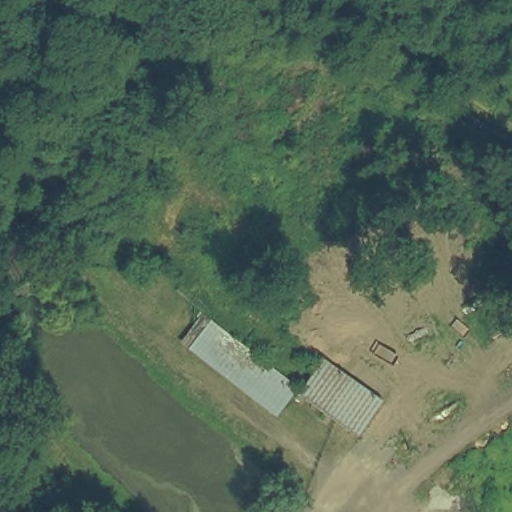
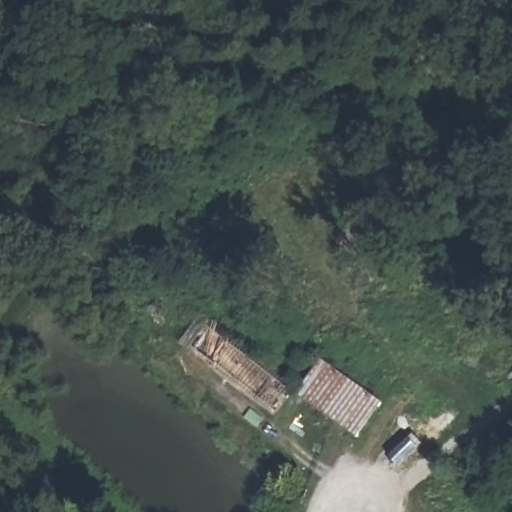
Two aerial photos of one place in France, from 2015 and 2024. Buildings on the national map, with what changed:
unchanged [(292,403),(273,422),(183,357),(202,322),(298,389),(292,403)]
unchanged [(298,389),(316,363),(379,405),(354,439),(292,403),(298,389)]

